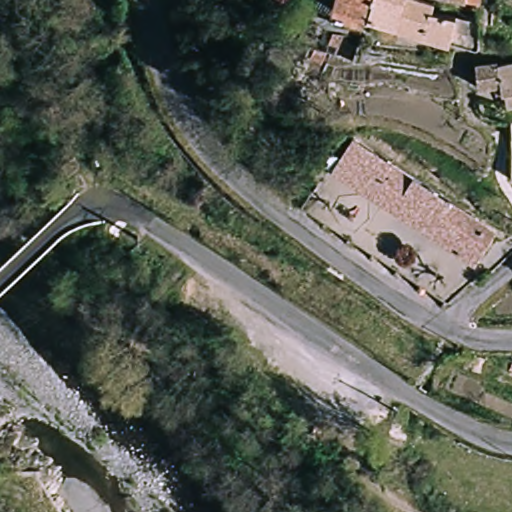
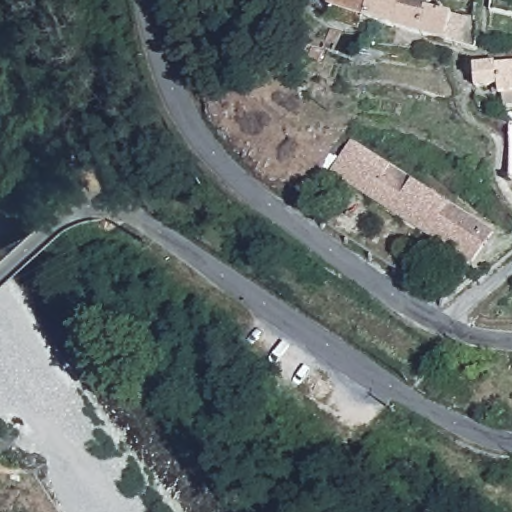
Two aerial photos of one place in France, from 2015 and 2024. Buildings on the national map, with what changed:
unchanged [(276,0),(284,0),(282,3),(276,0)]
unchanged [(333,0),(378,0),(377,7),(375,16),(332,3),(333,0)]
unchanged [(448,13),(442,37),(407,27),(375,16),(378,0),(421,0),(436,5),(436,9),(448,13)]
unchanged [(462,0),(500,0),(497,9),(462,0)]
unchanged [(480,51),(465,45),(471,21),(492,25),(480,51)]
unchanged [(332,26),(344,30),(339,51),(323,46),(332,26)]
unchanged [(512,61),(512,108),(507,109),(503,88),(480,89),(477,63),(512,61)]
unchanged [(49,100),(54,110),(44,116),(37,106),(49,100)]
unchanged [(357,140),(361,134),(494,232),(473,259),(345,168),(338,161),(357,140)]

